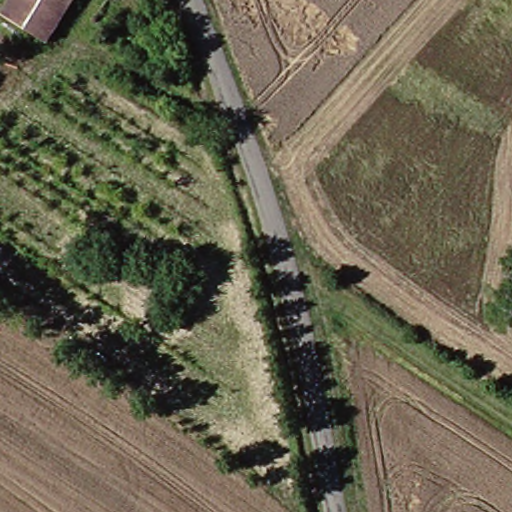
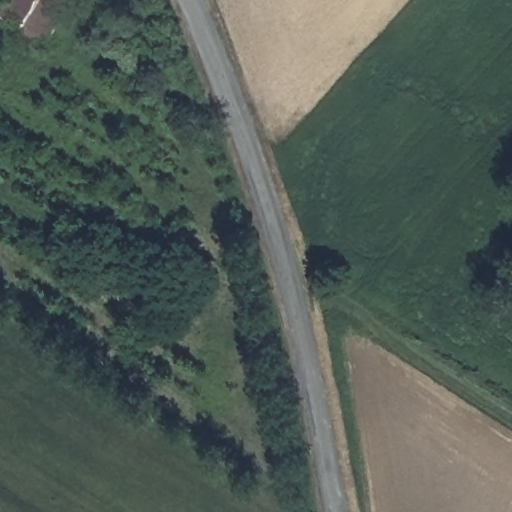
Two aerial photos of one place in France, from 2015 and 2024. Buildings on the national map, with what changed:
unchanged [(17,12),(24,0),(83,0),(60,37),(17,12)]

